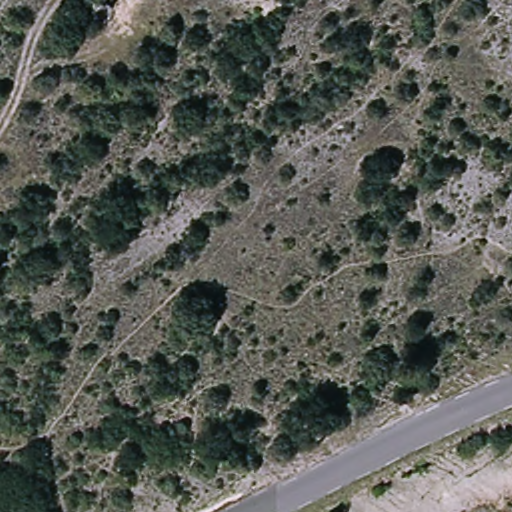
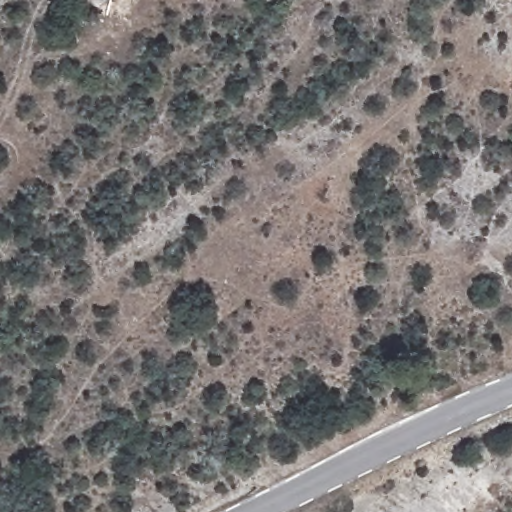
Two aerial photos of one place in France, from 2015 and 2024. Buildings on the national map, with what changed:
unchanged [(116,0),(110,23),(83,13),(88,0),(116,0)]

